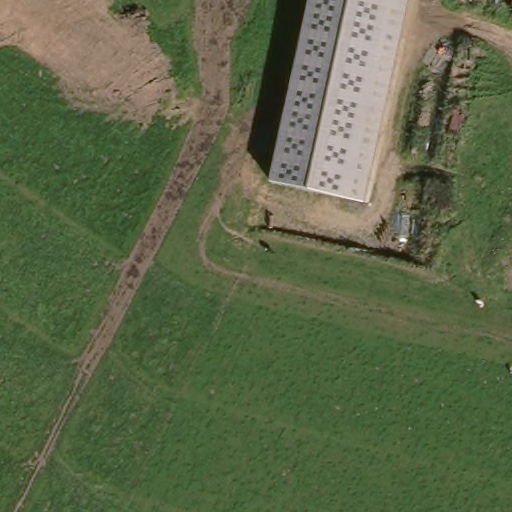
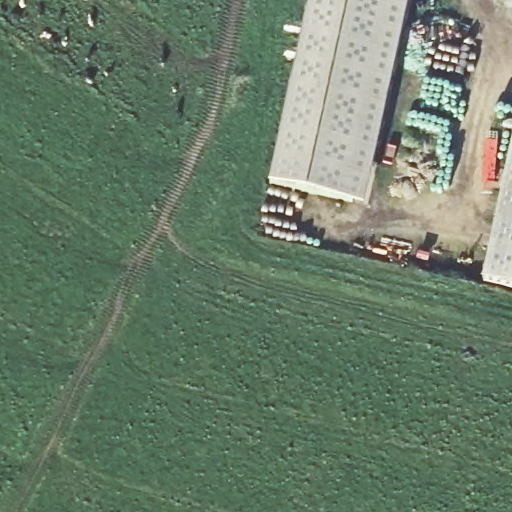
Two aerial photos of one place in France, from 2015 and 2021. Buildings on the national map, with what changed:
unchanged [(364,203),(270,181),(310,0),(408,0),(364,203)]
new [(481,280),(512,141),(512,287),(481,280)]

